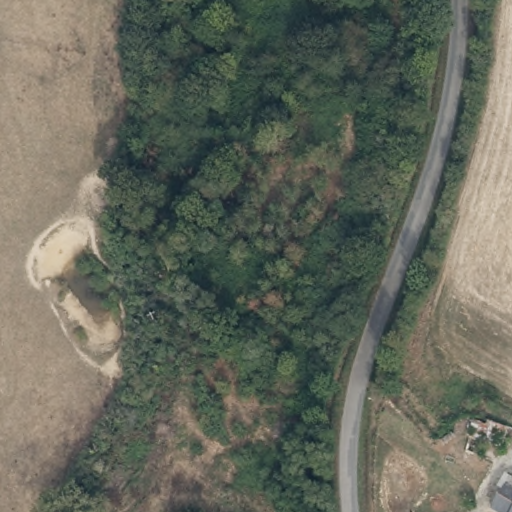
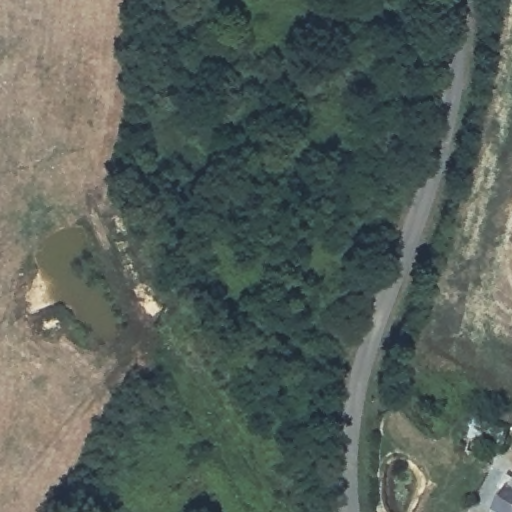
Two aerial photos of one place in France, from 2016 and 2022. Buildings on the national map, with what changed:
unchanged [(512,476),(512,512),(497,512),(491,509),(512,476)]

